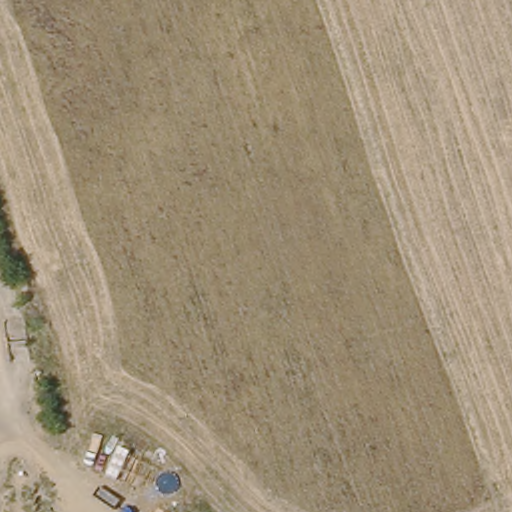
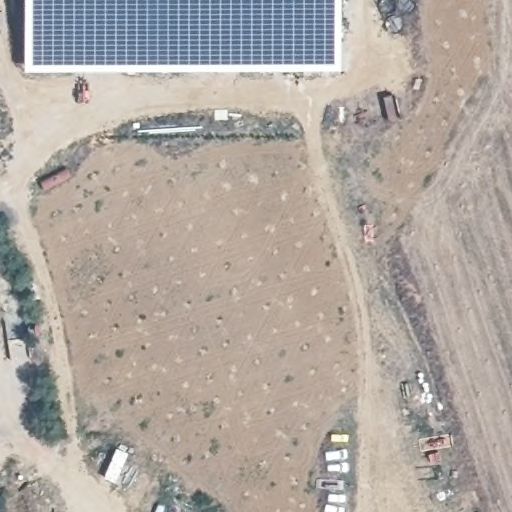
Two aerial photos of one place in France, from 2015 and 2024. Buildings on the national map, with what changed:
new [(32,77),(29,0),(338,0),(338,79),(32,77)]

